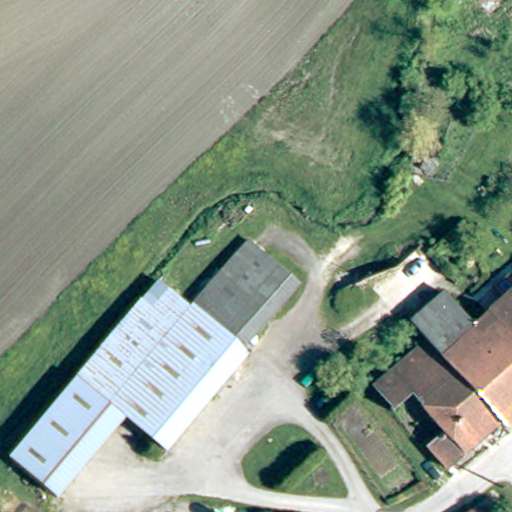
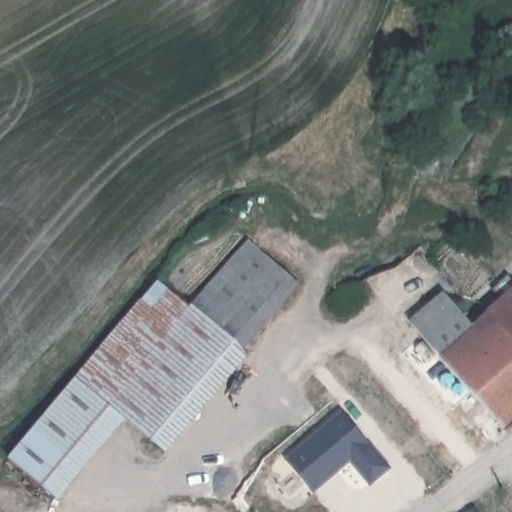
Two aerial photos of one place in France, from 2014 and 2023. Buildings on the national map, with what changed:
unchanged [(300,290),(245,356),(194,313),(251,247),(300,290)]
unchanged [(512,272),(512,288),(505,279),(512,272)]
unchanged [(160,287),(194,313),(245,356),(249,360),(169,455),(129,421),(81,381),(120,335),(137,317),(160,287)]
unchanged [(445,362),(430,347),(417,332),(450,303),(483,338),(497,326),(490,318),(505,305),(512,313),(512,430),(508,433),(505,431),(445,362)]
demolished [(451,474),(433,451),(450,438),(419,400),(397,417),(377,392),(430,347),(445,362),(505,431),(451,474)]
unchanged [(129,421),(60,502),(10,461),(81,381),(129,421)]
new [(340,416),(387,470),(367,486),(347,464),(337,473),(333,469),(308,490),(286,465),(340,416)]

